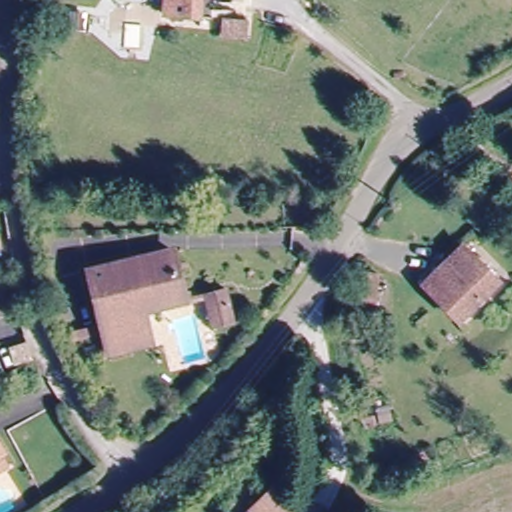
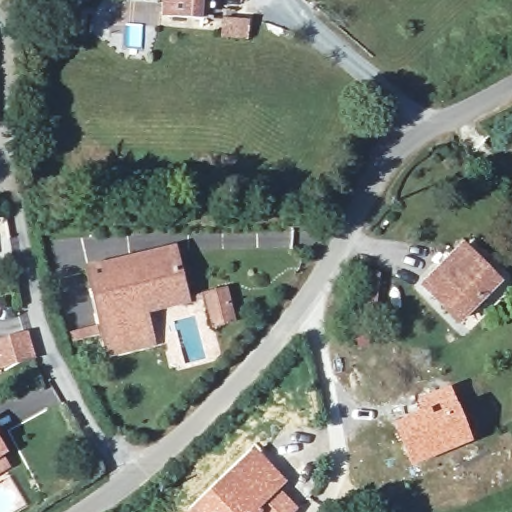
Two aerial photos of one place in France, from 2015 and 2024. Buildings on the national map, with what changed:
unchanged [(210,21),(164,18),(165,0),(212,0),(210,21)]
unchanged [(456,320),(425,282),(462,251),(493,289),(456,320)]
unchanged [(180,283),(154,291),(142,313),(148,345),(105,356),(88,267),(173,253),(180,283)]
unchanged [(369,267),(356,298),(336,290),(348,258),(369,267)]
unchanged [(226,283),(233,312),(214,317),(207,288),(226,283)]
new [(28,330),(36,359),(0,370),(0,338),(8,336),(28,330)]
new [(419,410),(415,398),(451,387),(474,442),(410,468),(392,422),(419,410)]
new [(288,482),(280,490),(299,508),(295,512),(186,512),(253,446),(288,482)]
unchanged [(2,467),(0,469),(0,463),(2,467)]

